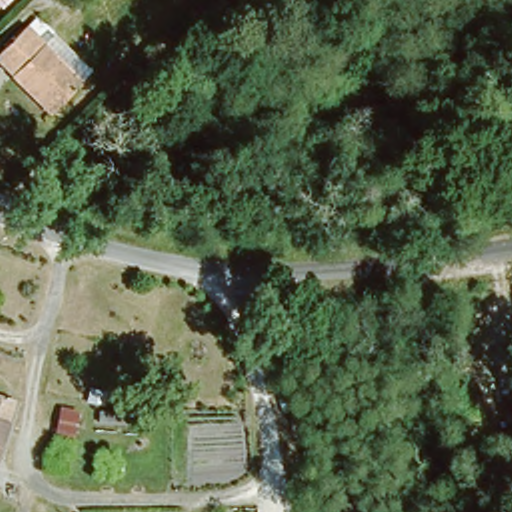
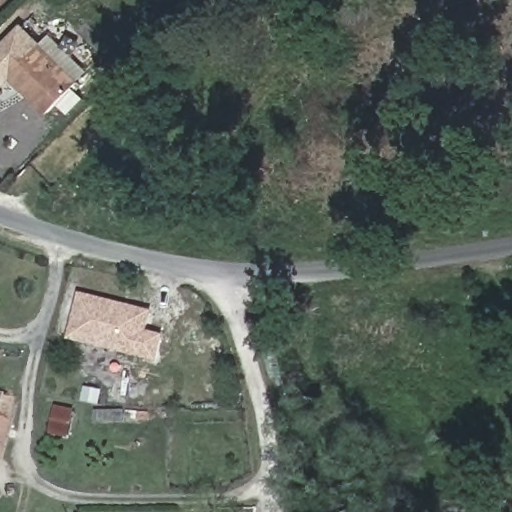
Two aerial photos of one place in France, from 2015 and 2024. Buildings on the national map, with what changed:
unchanged [(42,110),(6,75),(0,81),(0,45),(20,26),(75,80),(42,110)]
new [(147,330),(166,334),(158,363),(67,339),(79,292),(154,311),(147,330)]
unchanged [(0,423),(0,399),(7,402),(0,423)]
unchanged [(73,413),(69,426),(57,423),(55,422),(59,409),(73,413)]

